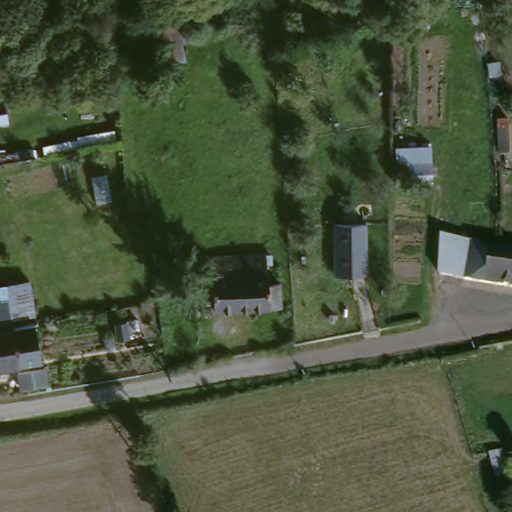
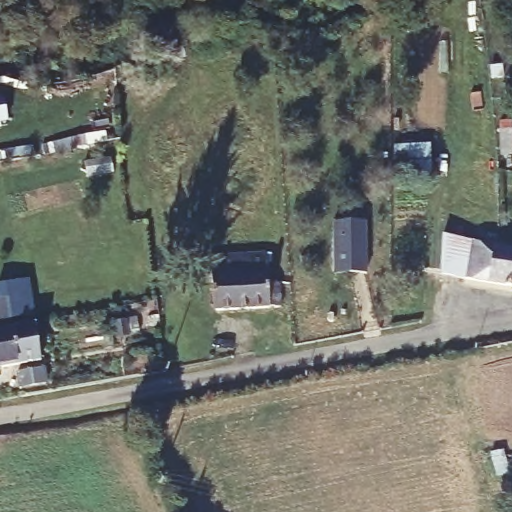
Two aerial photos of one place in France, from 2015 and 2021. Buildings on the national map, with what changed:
unchanged [(0,89),(3,120),(0,121),(0,89)]
unchanged [(389,149),(427,145),(428,190),(389,191),(389,149)]
unchanged [(360,221),(361,272),(331,273),(330,222),(360,221)]
unchanged [(430,281),(437,243),(463,246),(494,250),(512,253),(512,291),(430,281)]
unchanged [(265,255),(267,282),(278,282),(278,306),(214,310),(210,257),(265,255)]
unchanged [(13,279),(36,275),(41,310),(19,315),(21,321),(0,323),(0,296),(16,294),(13,279)]
unchanged [(22,322),(43,318),(48,356),(4,362),(0,363),(0,327),(22,324),(22,322)]
unchanged [(49,363),(51,379),(26,383),(23,367),(49,363)]

